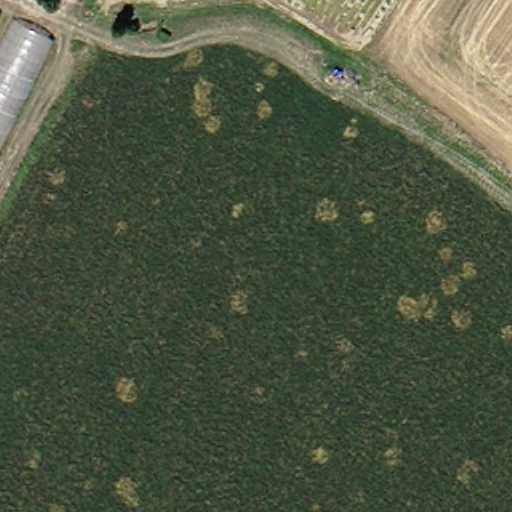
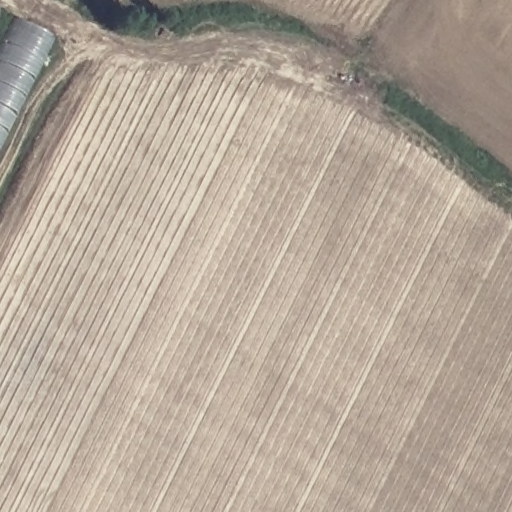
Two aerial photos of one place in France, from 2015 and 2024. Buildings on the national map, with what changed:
unchanged [(0,123),(0,14),(42,35),(0,123)]

